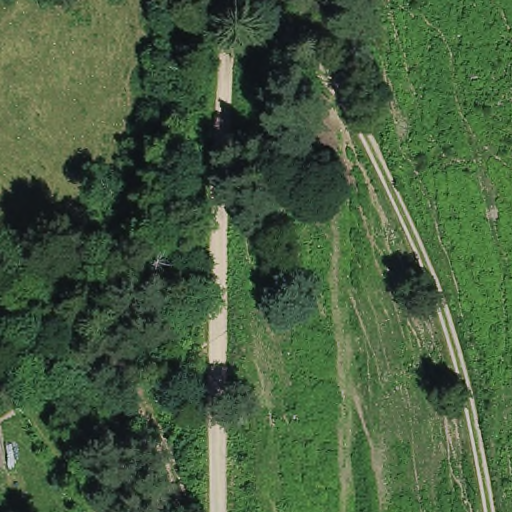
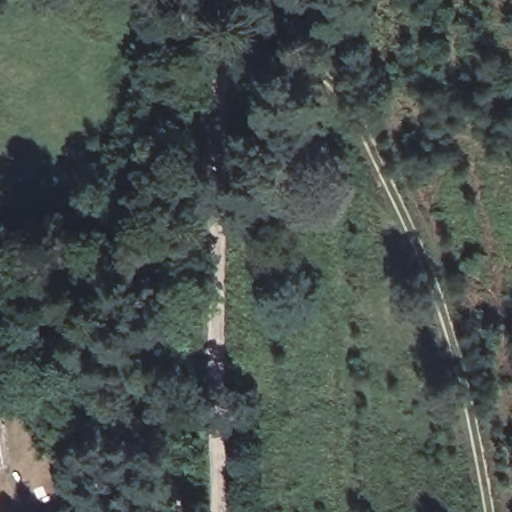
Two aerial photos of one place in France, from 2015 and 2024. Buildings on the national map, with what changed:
unchanged [(5,461),(0,462),(0,433),(5,461)]

